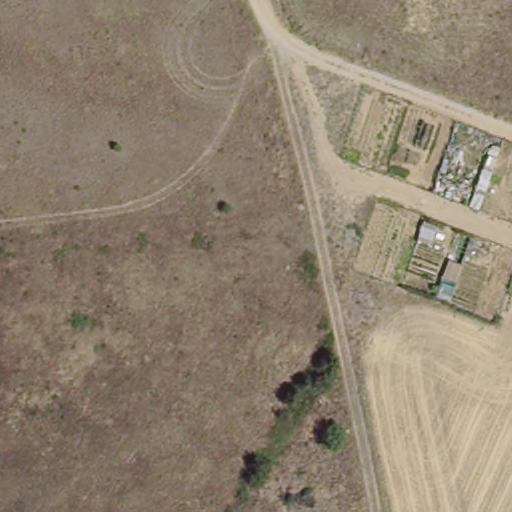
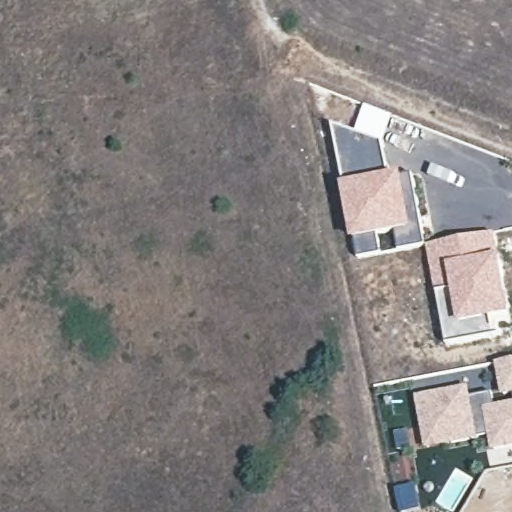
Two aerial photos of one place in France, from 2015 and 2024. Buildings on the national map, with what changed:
new [(355,131),(384,142),(384,149),(389,175),(343,183),(332,126),(355,131)]
new [(358,259),(354,242),(343,183),(389,175),(404,173),(412,209),(414,228),(394,235),(379,238),(382,254),(358,259)]
new [(496,232),(509,295),(512,318),(497,320),(499,335),(446,346),(426,246),(496,232)]
new [(512,360),(512,397),(504,398),(502,398),(495,362),(512,360)]
new [(469,386),(475,413),(478,429),(479,438),(479,440),(424,450),(414,397),(469,386)]
new [(493,396),(495,407),(512,403),(512,449),(493,453),(489,437),(479,438),(478,429),(475,413),(472,399),(493,396)]
new [(421,508),(407,512),(399,512),(393,486),(414,481),(421,508)]

